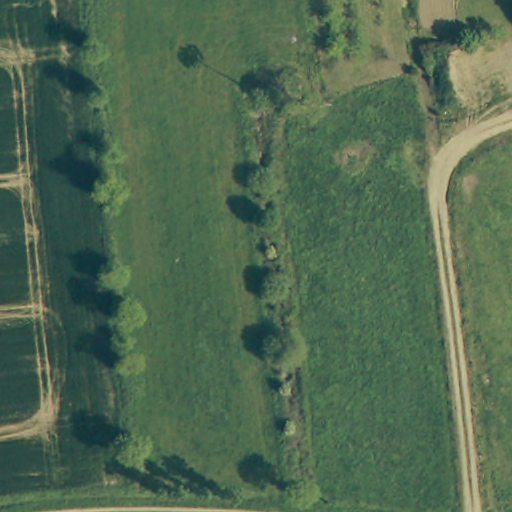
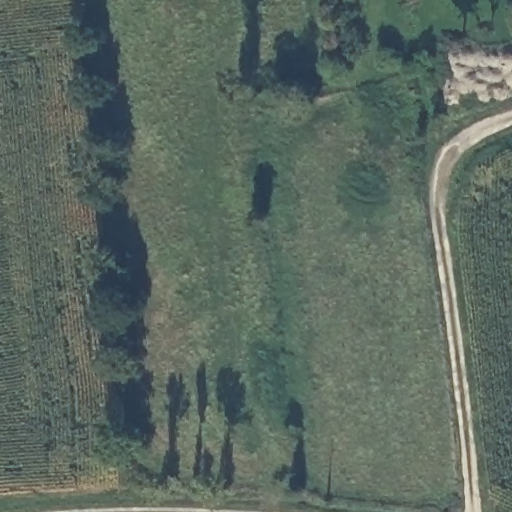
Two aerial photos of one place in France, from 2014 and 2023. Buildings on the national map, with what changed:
unchanged [(281,68),(286,95),(269,97),(265,70),(281,68)]

